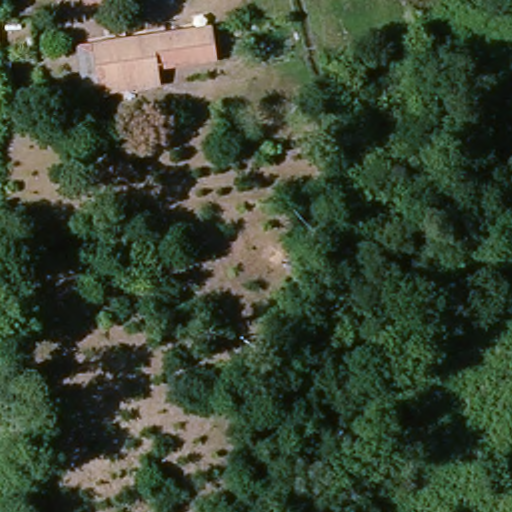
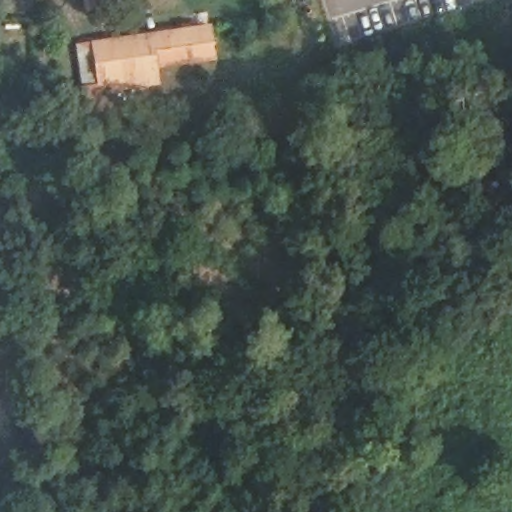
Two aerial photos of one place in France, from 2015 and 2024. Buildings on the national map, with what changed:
unchanged [(92,1),(91,0),(96,0),(92,1)]
unchanged [(80,102),(79,95),(77,82),(98,80),(91,43),(208,29),(209,39),(210,55),(202,56),(155,60),(155,70),(155,77),(100,85),(101,93),(102,100),(80,102)]

